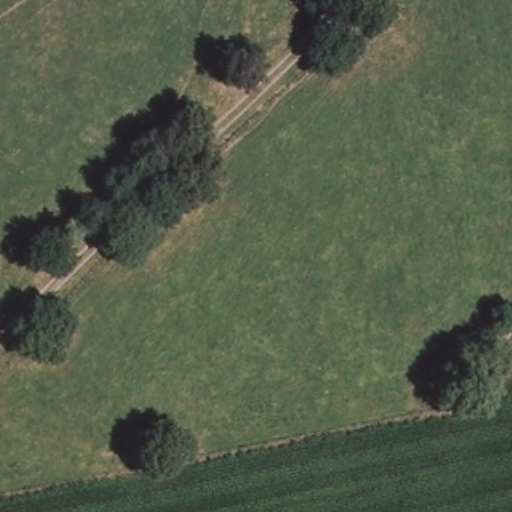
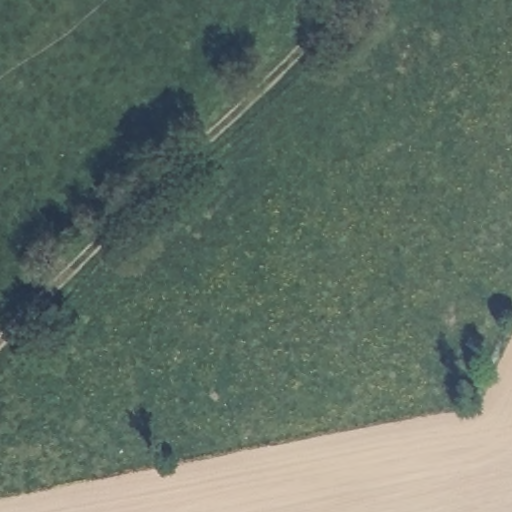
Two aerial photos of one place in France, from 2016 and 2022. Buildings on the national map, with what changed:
[]

